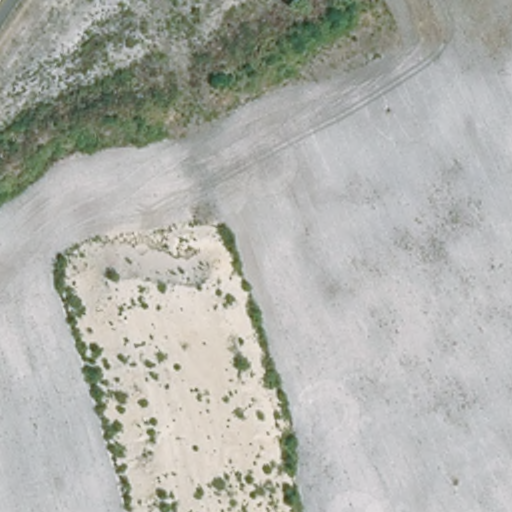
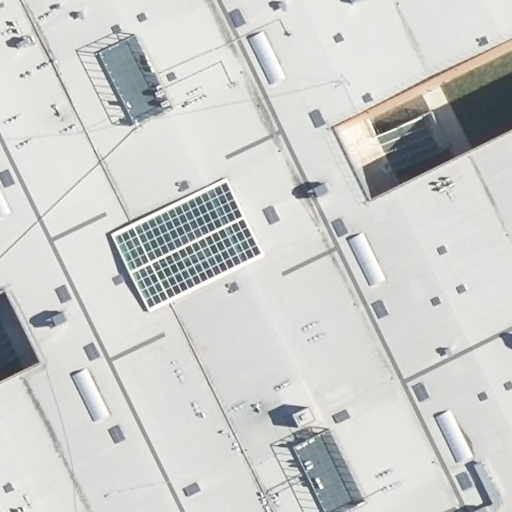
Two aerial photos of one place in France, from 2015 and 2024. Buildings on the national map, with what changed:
new [(34,375),(0,308),(0,0),(512,0),(512,51),(372,119),(408,191),(512,140),(512,512),(0,512),(0,392),(34,375)]

